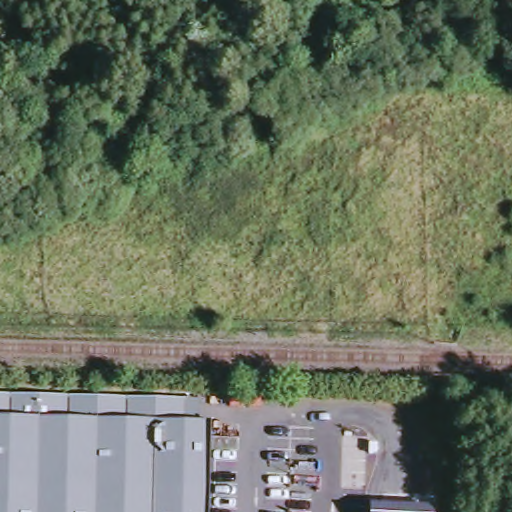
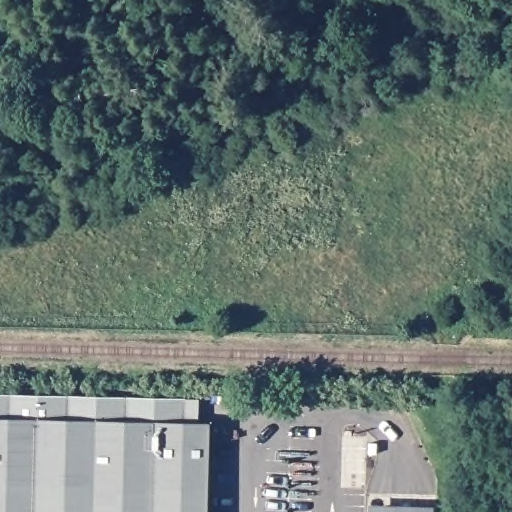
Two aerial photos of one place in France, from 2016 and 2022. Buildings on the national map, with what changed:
unchanged [(128,398),(144,399),(143,429),(205,431),(202,512),(0,512),(0,394),(128,398)]
unchanged [(306,453),(306,440),(318,441),(318,454),(306,453)]
unchanged [(368,502),(432,504),(432,512),(368,512),(368,502)]

